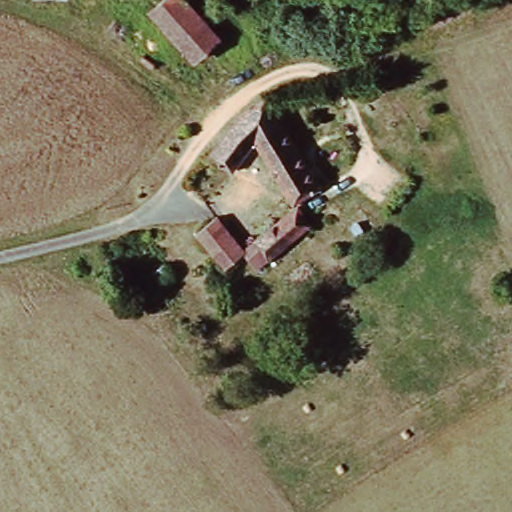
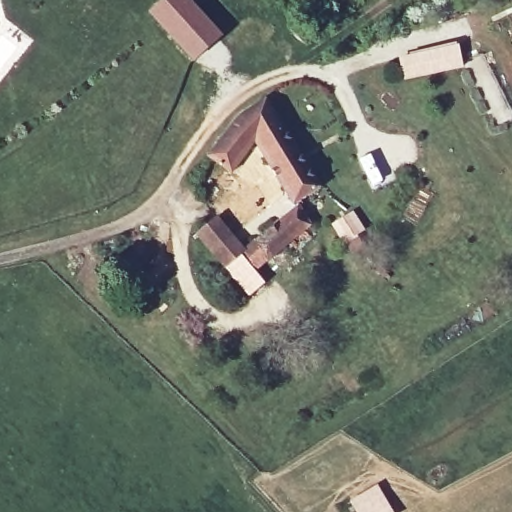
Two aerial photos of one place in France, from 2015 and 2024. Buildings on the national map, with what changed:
unchanged [(151,17),(170,0),(178,0),(216,43),(193,64),(151,17)]
new [(403,81),(398,58),(460,46),(464,69),(403,81)]
unchanged [(251,148),(241,160),(229,181),(208,162),(238,120),(261,102),(290,146),(265,165),(251,148)]
unchanged [(320,190),(292,207),(265,165),(290,146),(320,190)]
unchanged [(296,211),(310,229),(256,272),(242,256),(296,211)]
unchanged [(242,256),(224,271),(196,237),(214,222),(242,256)]
new [(350,501),(378,485),(393,512),(357,512),(350,501)]

